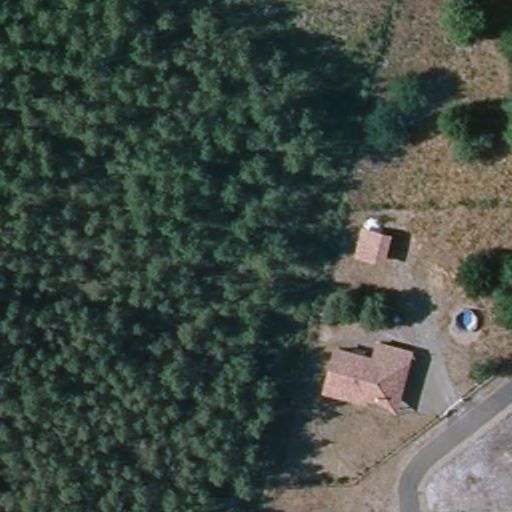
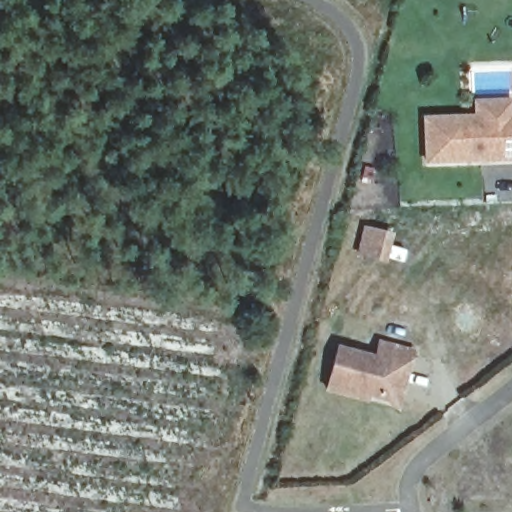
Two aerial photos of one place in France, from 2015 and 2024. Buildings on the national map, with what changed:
new [(476,118),(475,104),(510,102),(511,116),(512,116),(512,158),(427,162),(431,120),(476,118)]
unchanged [(395,234),(385,267),(353,257),(362,223),(395,234)]
unchanged [(356,396),(326,387),(337,346),(375,356),(378,342),(411,350),(406,367),(396,406),(356,396)]

